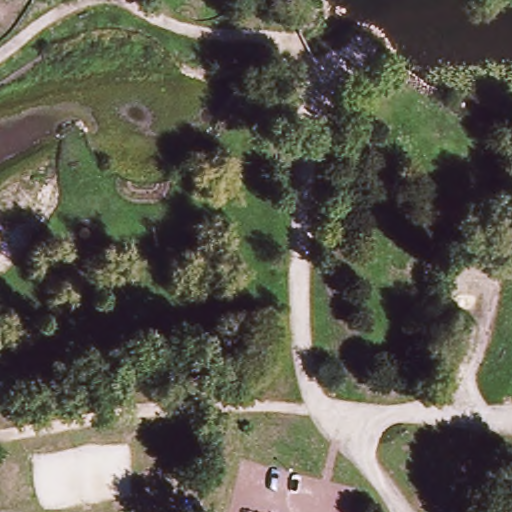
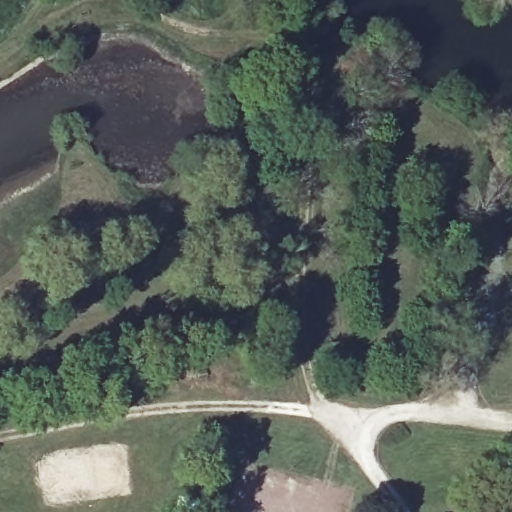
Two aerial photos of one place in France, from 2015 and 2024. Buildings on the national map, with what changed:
[]

